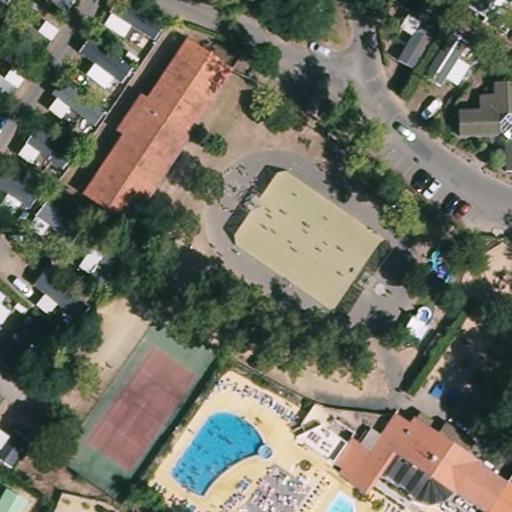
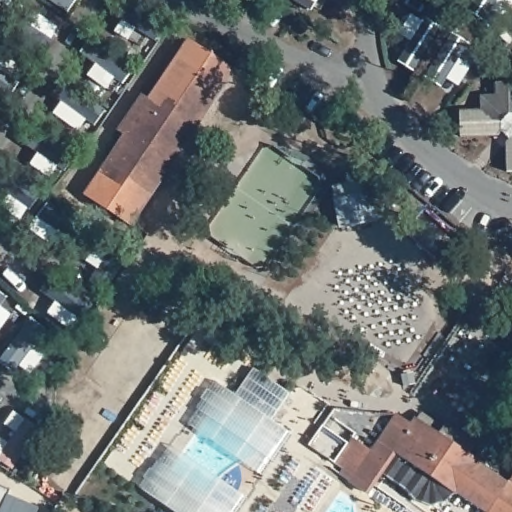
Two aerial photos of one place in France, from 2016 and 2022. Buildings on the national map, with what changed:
unchanged [(233,77),(130,229),(85,199),(124,139),(116,134),(140,99),(148,104),(187,46),(233,77)]
unchanged [(512,121),(512,179),(504,179),(503,150),(506,146),(499,140),(497,141),(495,144),(459,151),(454,131),(473,126),(471,111),(486,107),(484,95),(508,90),(512,109),(512,121)]
new [(253,368),(289,393),(271,420),(234,395),(253,368)]
new [(158,460),(176,433),(178,435),(196,409),(194,407),(213,380),(234,395),(271,420),(292,435),(273,462),(271,461),(253,487),(255,488),(238,512),(173,512),(137,486),(156,459),(158,460)]
unchanged [(512,476),(512,512),(474,512),(453,497),(395,457),(387,468),(380,478),(366,498),(337,480),(341,475),(295,442),(319,430),(346,449),(349,444),(353,443),(369,455),(394,419),(410,430),(415,424),(505,486),(512,476)]
unchanged [(395,457),(453,497),(443,507),(433,512),(427,512),(380,478),(387,468),(395,457)]
new [(40,507),(38,512),(0,512),(0,484),(12,488),(10,494),(40,507)]

